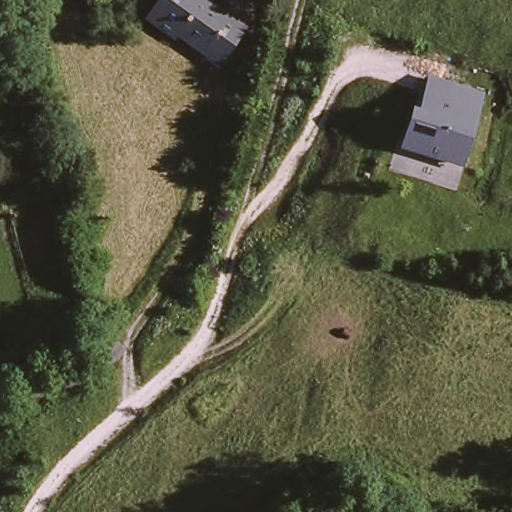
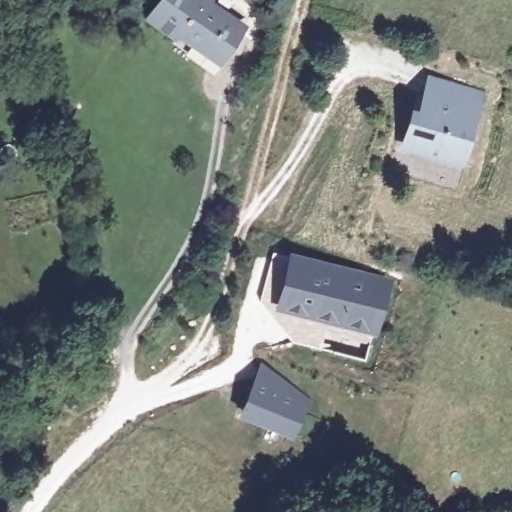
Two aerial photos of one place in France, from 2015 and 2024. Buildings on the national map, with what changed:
unchanged [(238,25),(231,34),(233,36),(215,60),(199,49),(193,56),(147,21),(163,0),(207,0),(211,2),(204,12),(218,24),(225,15),(238,25)]
unchanged [(473,117),(456,171),(418,156),(420,147),(402,138),(410,118),(415,120),(428,85),(476,101),(469,116),(473,117)]
new [(276,254),(390,287),(372,351),(327,338),(322,353),(292,345),(262,303),(276,254)]
new [(310,400),(294,439),(238,416),(262,361),(310,400)]

